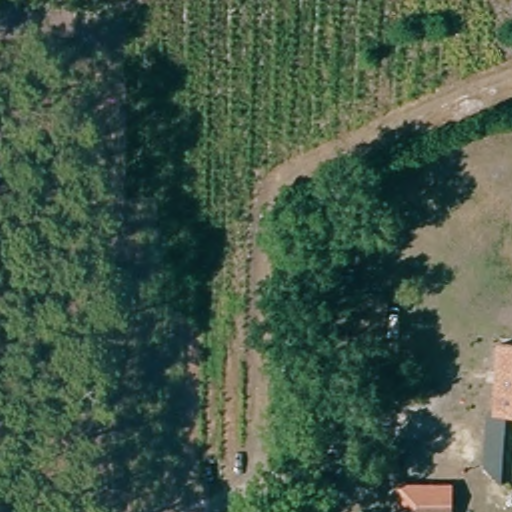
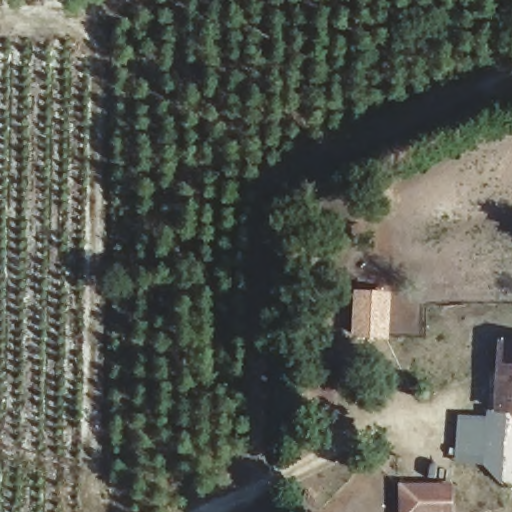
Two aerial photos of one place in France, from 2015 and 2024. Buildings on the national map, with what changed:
new [(352,289),(391,292),(388,340),(350,337),(352,289)]
demolished [(391,293),(390,332),(345,332),(347,291),(391,293)]
unchanged [(497,407),(502,341),(512,341),(512,410),(496,410),(497,407)]
new [(485,464),(456,463),(460,416),(487,417),(487,411),(496,410),(505,410),(501,483),(485,464)]
unchanged [(450,512),(398,512),(399,492),(450,491),(450,512)]

